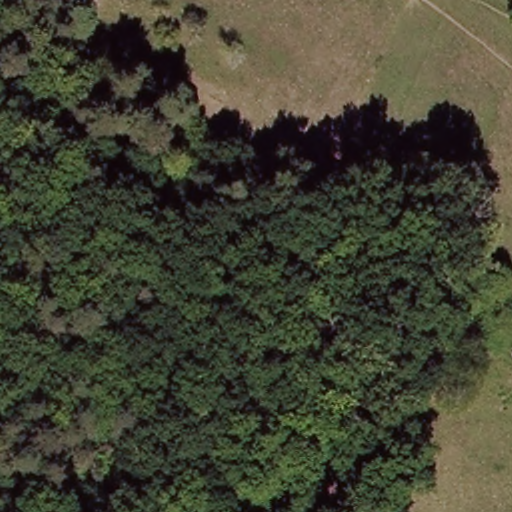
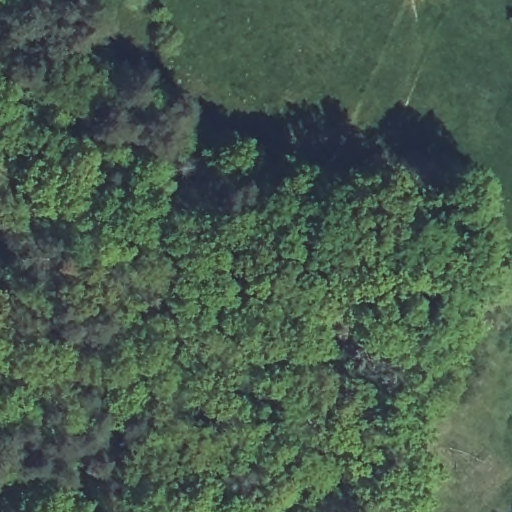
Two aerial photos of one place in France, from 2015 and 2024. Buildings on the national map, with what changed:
unchanged [(478,328),(475,316),(495,312),(500,323),(478,328)]

